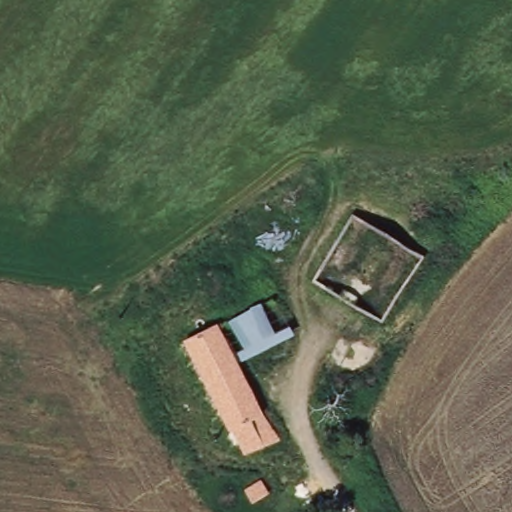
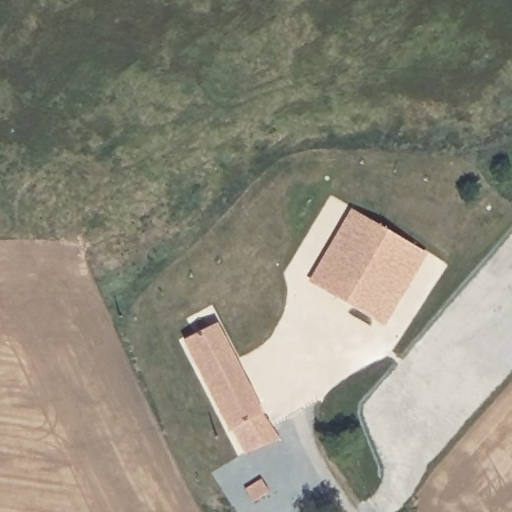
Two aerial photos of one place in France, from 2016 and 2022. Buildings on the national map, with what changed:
new [(426,252),(384,325),(309,281),(351,208),(426,252)]
unchanged [(234,352),(221,327),(249,307),(268,294),(292,330),(280,338),(239,362),(234,352)]
unchanged [(234,352),(201,367),(199,368),(187,341),(220,324),(221,327),(234,352)]
unchanged [(201,367),(234,352),(239,362),(262,412),(279,441),(243,455),(231,431),(199,368),(201,367)]

